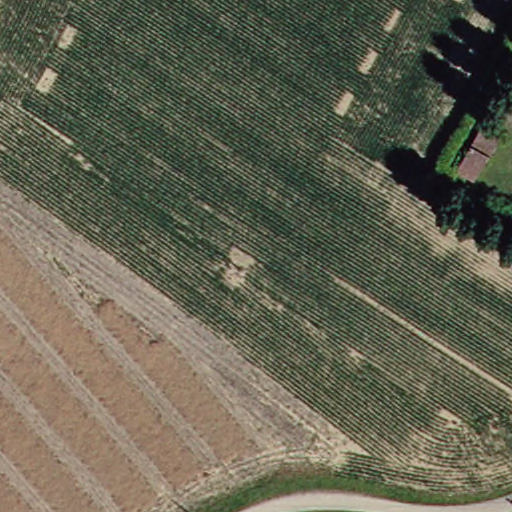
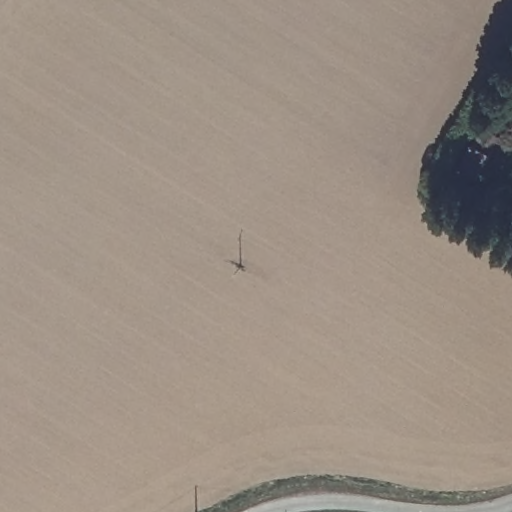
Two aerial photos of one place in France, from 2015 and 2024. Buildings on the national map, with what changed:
unchanged [(465,140),(490,155),(473,183),(449,169),(465,140)]

